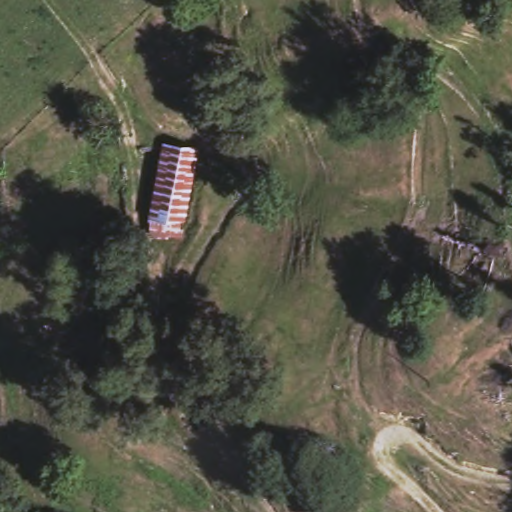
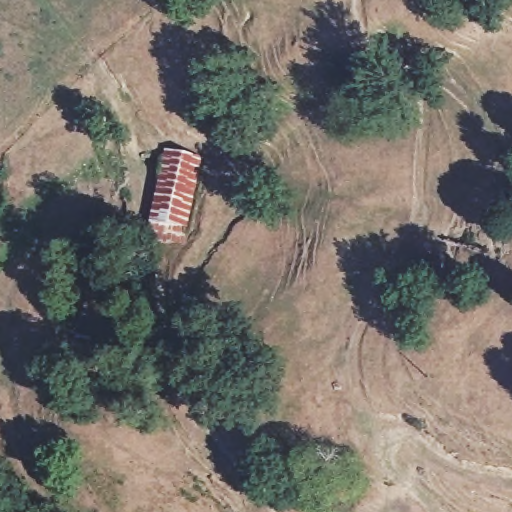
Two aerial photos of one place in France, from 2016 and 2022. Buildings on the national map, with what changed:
unchanged [(144,237),(152,188),(159,145),(199,151),(184,244),(144,237)]

